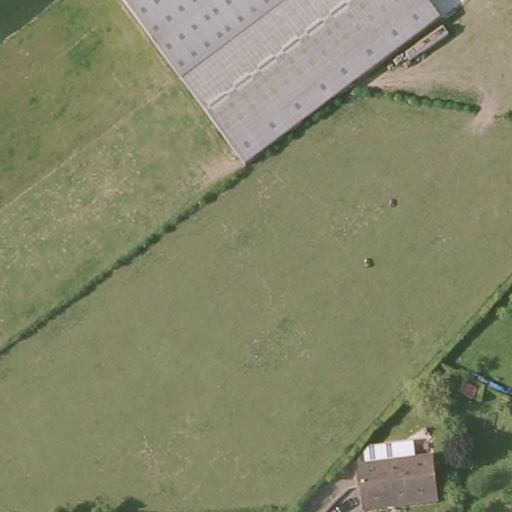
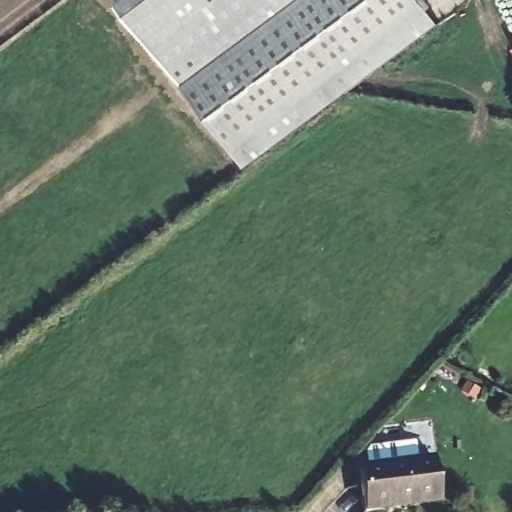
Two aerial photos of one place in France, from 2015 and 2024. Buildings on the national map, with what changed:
unchanged [(427,5),(235,145),(187,82),(123,0),(301,0),(298,2),(278,16),(301,0),(313,0),(424,0),(427,5)]
unchanged [(441,22),(248,165),(235,145),(427,5),(441,22)]
unchanged [(360,463),(368,463),(366,448),(415,443),(417,458),(438,456),(443,503),(379,512),(364,512),(360,463)]

